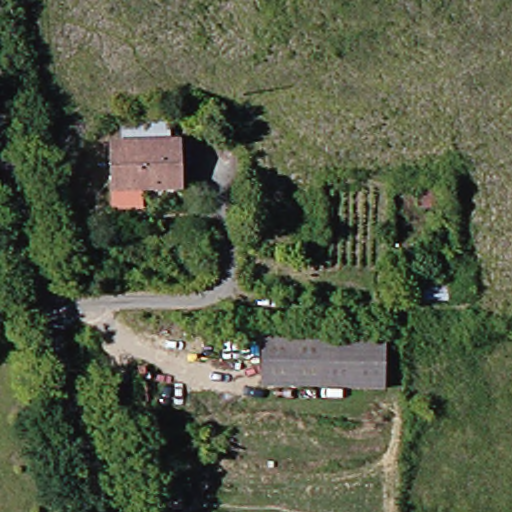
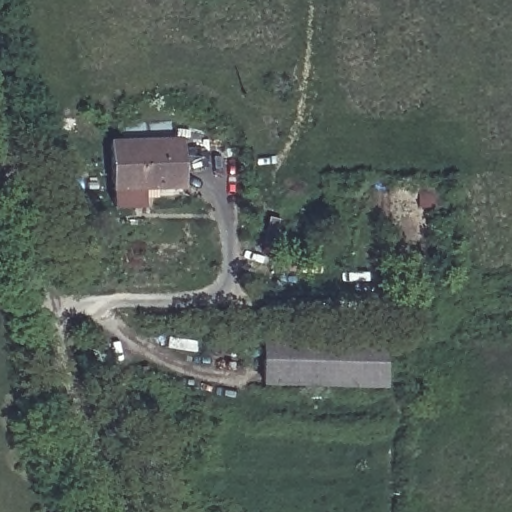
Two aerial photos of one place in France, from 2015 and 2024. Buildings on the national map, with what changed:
unchanged [(185,150),(184,197),(112,196),(112,148),(185,150)]
unchanged [(270,386),(271,336),(391,337),(392,391),(270,386)]

